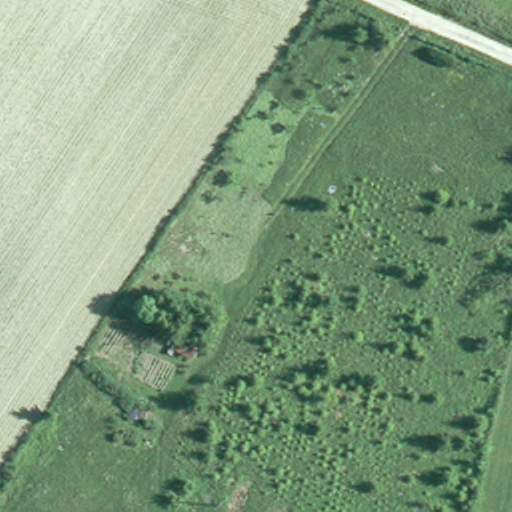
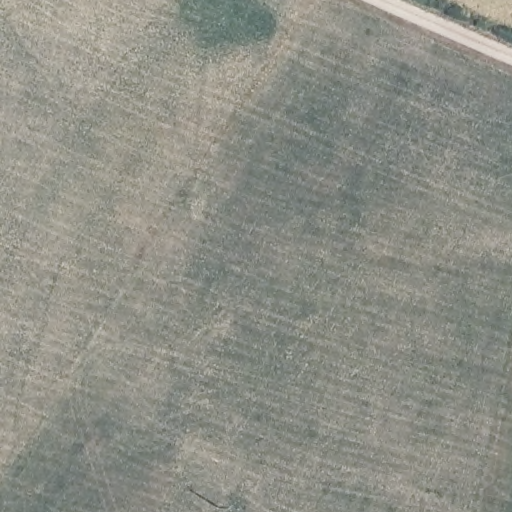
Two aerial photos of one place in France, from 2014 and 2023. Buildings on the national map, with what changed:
[]

